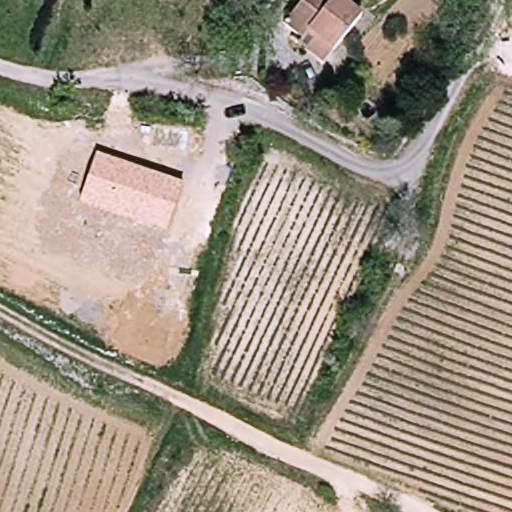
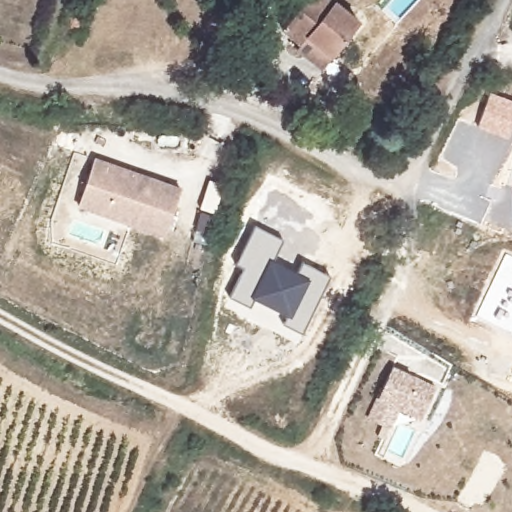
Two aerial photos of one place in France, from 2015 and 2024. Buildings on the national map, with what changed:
unchanged [(306,41),(289,29),(312,0),(339,0),(364,21),(339,52),(326,66),(303,46),(306,41)]
new [(512,100),(512,125),(507,137),(478,126),(490,93),(512,100)]
unchanged [(182,189),(166,238),(78,208),(95,159),(182,189)]
new [(225,185),(208,239),(194,235),(210,181),(225,185)]
new [(301,332),(283,324),(286,316),(255,300),(251,308),(230,297),(243,269),(236,265),(256,225),(283,240),(273,259),(298,272),(302,263),(329,277),(301,332)]
new [(512,258),(512,330),(479,315),(507,255),(512,258)]
new [(393,365),(436,386),(422,417),(399,406),(390,426),(369,416),(393,365)]

